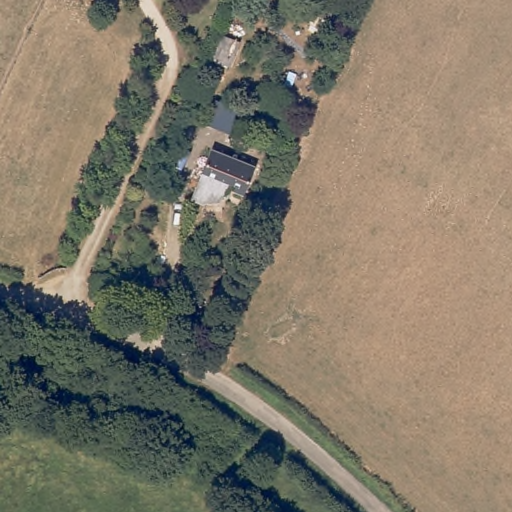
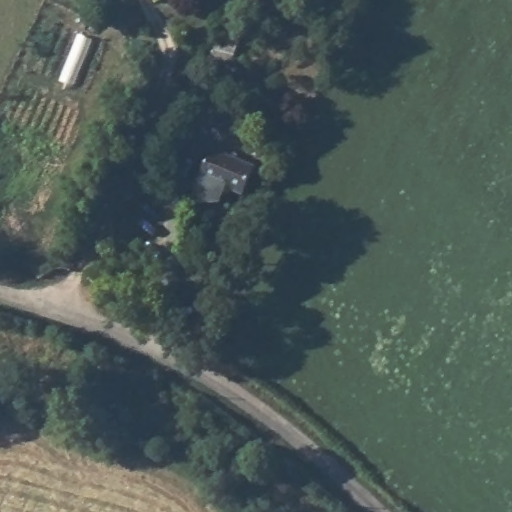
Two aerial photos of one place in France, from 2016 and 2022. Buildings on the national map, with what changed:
unchanged [(236,128),(242,131),(239,138),(206,124),(216,100),(243,111),(236,128)]
unchanged [(257,169),(246,196),(226,188),(220,204),(201,204),(191,199),(213,149),(257,169)]

